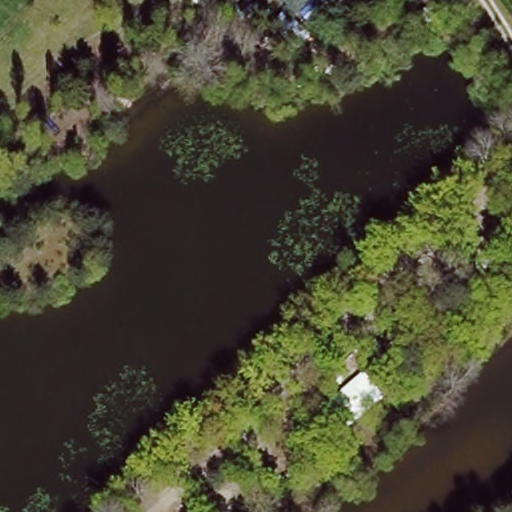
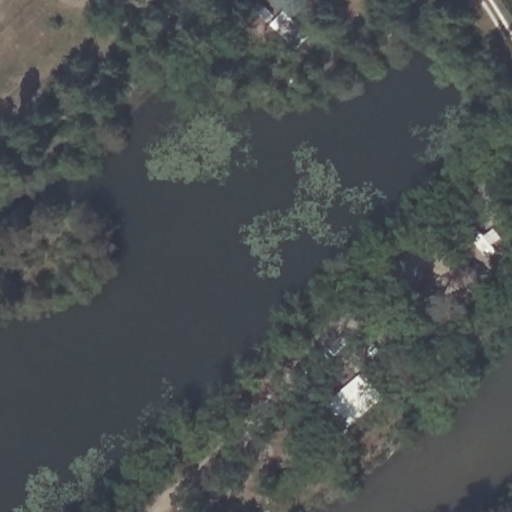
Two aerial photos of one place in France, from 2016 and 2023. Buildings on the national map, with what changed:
unchanged [(475,222),(481,231),(495,219),(505,232),(471,265),(452,239),(475,222)]
unchanged [(359,375),(382,398),(348,433),(323,402),(359,375)]
unchanged [(229,478),(248,499),(236,512),(221,512),(210,497),(229,478)]

